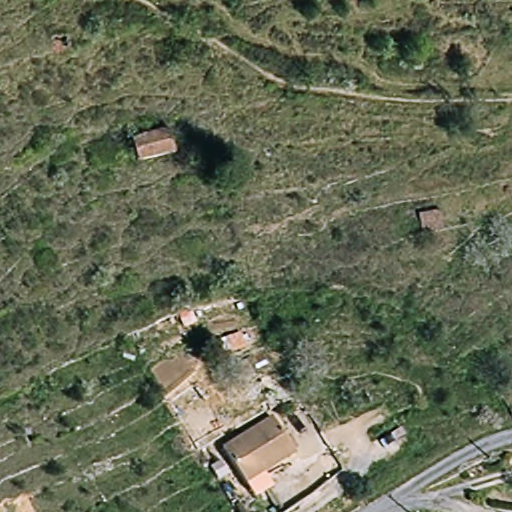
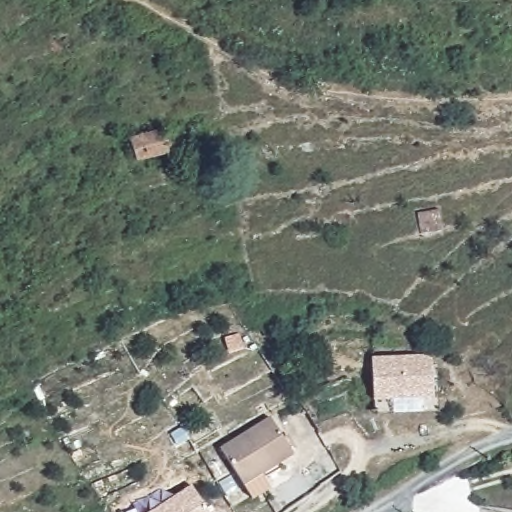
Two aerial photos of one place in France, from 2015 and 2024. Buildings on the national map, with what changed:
unchanged [(133,136),(171,122),(180,152),(141,160),(133,136)]
new [(372,357),(431,355),(433,400),(374,402),(372,357)]
unchanged [(254,500),(245,485),(222,452),(267,421),(290,455),(262,473),(270,488),(254,500)]
new [(192,485),(210,512),(150,512),(192,485)]

